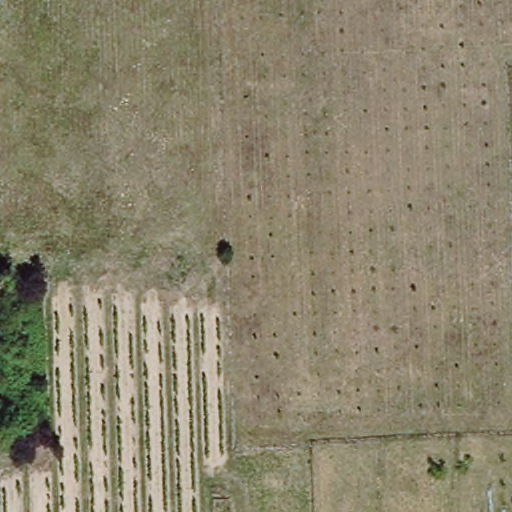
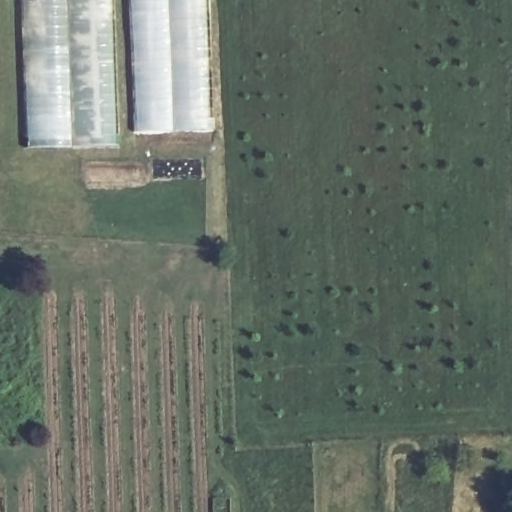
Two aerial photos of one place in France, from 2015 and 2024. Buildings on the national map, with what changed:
new [(114,29),(119,147),(28,148),(22,51),(21,0),(114,0),(114,29)]
new [(209,66),(212,130),(134,132),(134,89),(129,0),(208,0),(209,66)]

